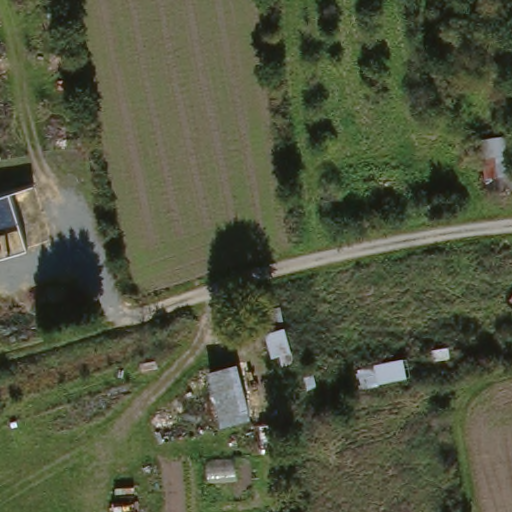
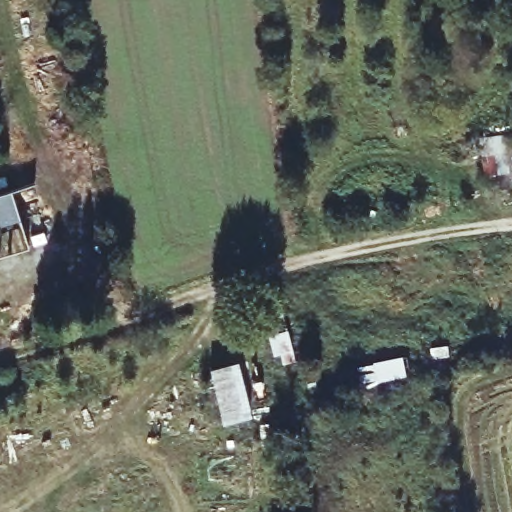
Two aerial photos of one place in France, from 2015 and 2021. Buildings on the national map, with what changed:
unchanged [(512,143),(512,173),(486,179),(479,132),(510,130),(512,143)]
unchanged [(0,195),(11,192),(28,246),(0,256),(0,195)]
unchanged [(293,365),(266,372),(256,309),(282,303),(293,365)]
unchanged [(408,360),(413,381),(364,392),(361,375),(408,360)]
unchanged [(251,421),(225,427),(212,373),(239,367),(251,421)]

